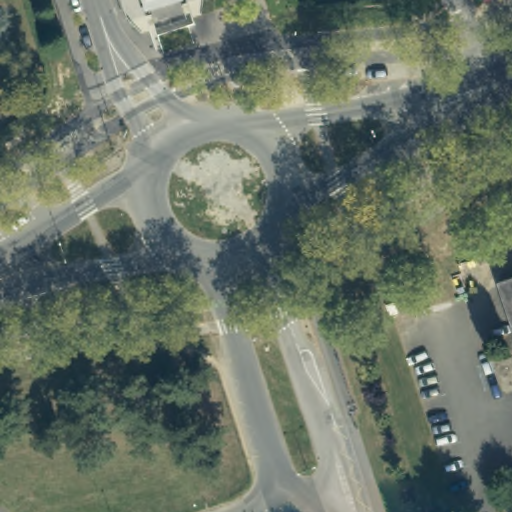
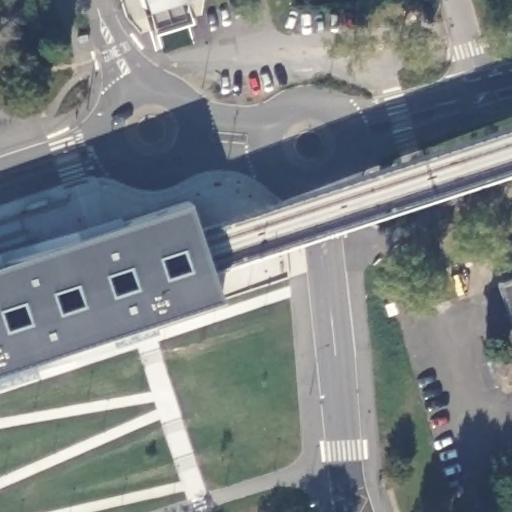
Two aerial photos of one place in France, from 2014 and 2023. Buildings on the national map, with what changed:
unchanged [(159,4),(134,12),(130,0),(165,0),(159,4)]
new [(187,200),(222,298),(153,321),(157,331),(0,385),(0,261),(1,263),(187,200)]
unchanged [(450,277),(458,275),(463,293),(455,296),(450,277)]
unchanged [(512,278),(512,332),(497,286),(496,283),(512,278)]
unchanged [(383,305),(390,304),(393,315),(386,317),(383,305)]
new [(64,512),(81,506),(83,512),(64,512)]

